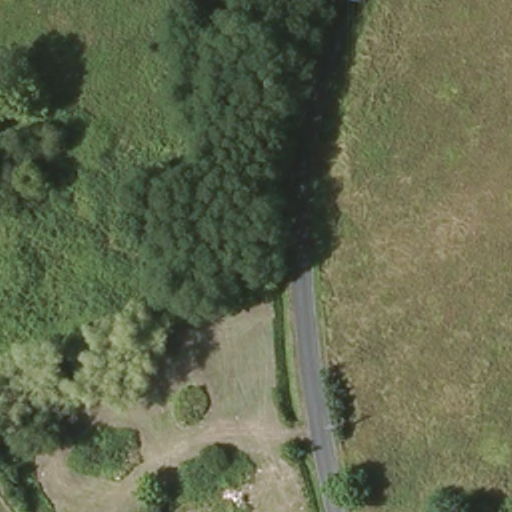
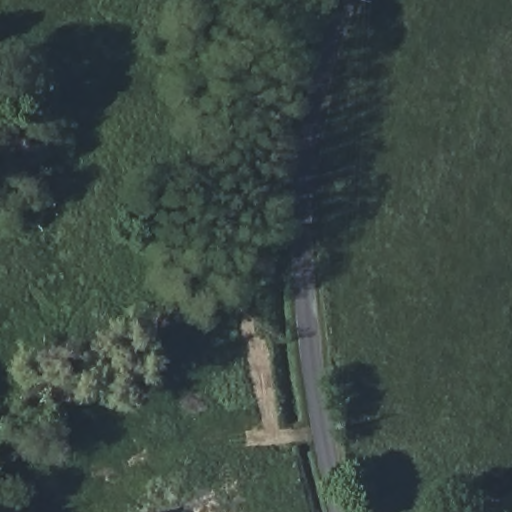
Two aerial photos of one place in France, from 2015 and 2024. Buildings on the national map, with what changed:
unchanged [(160,512),(149,512),(158,508),(160,512)]

